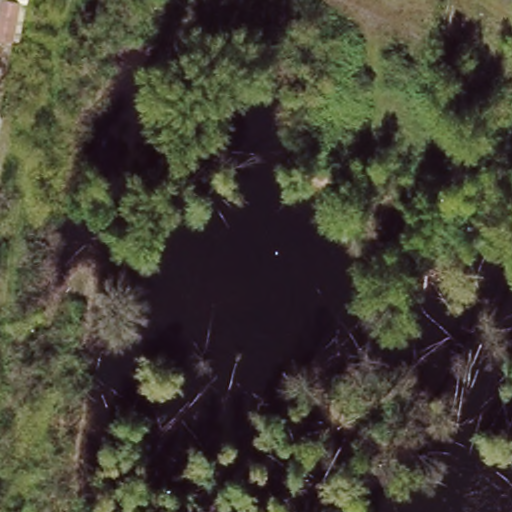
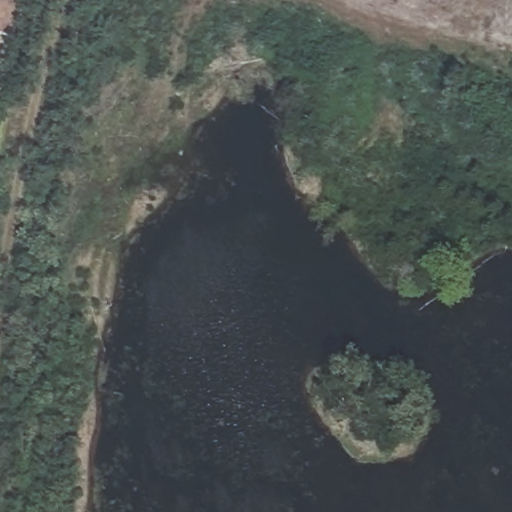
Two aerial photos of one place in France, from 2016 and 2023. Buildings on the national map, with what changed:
unchanged [(0,0),(12,0),(5,35),(0,34),(0,0)]

